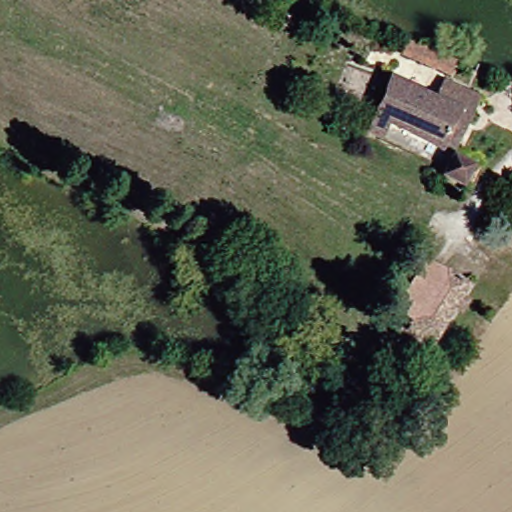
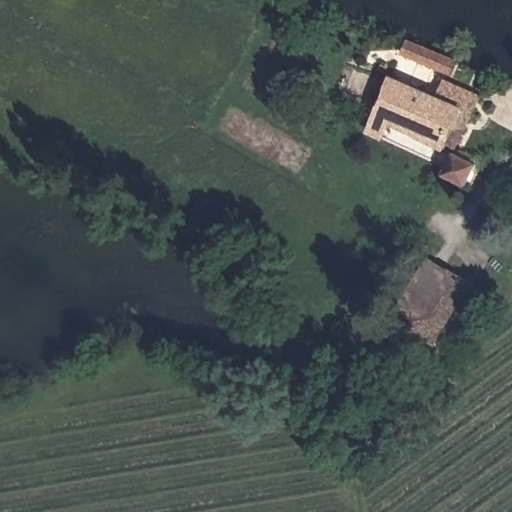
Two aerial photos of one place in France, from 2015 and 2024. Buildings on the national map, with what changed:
unchanged [(366,127),(374,113),(395,75),(439,97),(448,81),(482,99),(452,155),(385,118),(377,133),(366,127)]
unchanged [(482,169),(465,195),(442,182),(455,157),(482,169)]
unchanged [(397,320),(432,258),(455,270),(422,334),(397,320)]
unchanged [(442,345),(422,334),(455,270),(476,280),(442,345)]

